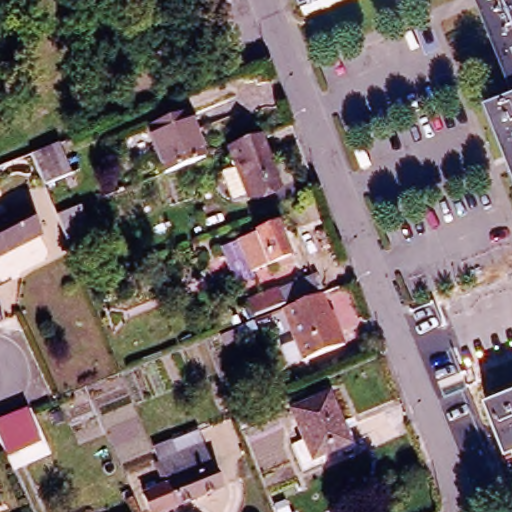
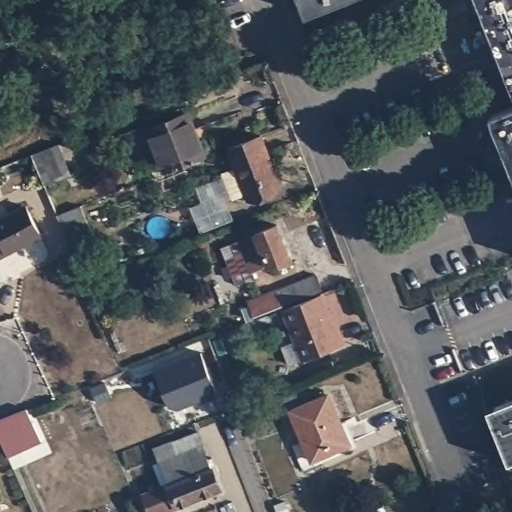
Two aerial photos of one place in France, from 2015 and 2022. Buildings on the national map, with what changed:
unchanged [(295,0),(337,0),(301,14),(295,0)]
unchanged [(470,0),(512,0),(512,179),(486,114),(512,103),(470,0)]
unchanged [(181,111),(199,155),(160,170),(143,126),(181,111)]
unchanged [(217,167),(233,160),(226,142),(259,129),(279,181),(246,194),(230,200),(217,167)]
unchanged [(55,147),(67,173),(39,183),(28,158),(55,147)]
unchanged [(43,233),(0,251),(0,216),(30,203),(43,233)]
unchanged [(78,210),(89,235),(65,244),(55,218),(78,210)]
unchanged [(278,267),(276,261),(272,262),(272,261),(256,267),(245,237),(260,231),(260,230),(281,222),(293,254),(296,260),(278,267)]
unchanged [(249,328),(255,326),(251,319),(322,291),(329,307),(258,335),(252,338),(249,328)]
unchanged [(344,343),(350,359),(308,376),(288,326),(313,317),(327,311),(328,311),(341,344),(344,343)]
new [(202,352),(218,394),(201,401),(200,398),(176,408),(169,405),(156,370),(202,352)]
unchanged [(348,443),(310,459),(290,410),(327,394),(348,443)]
unchanged [(487,410),(512,400),(512,461),(508,462),(487,410)]
unchanged [(5,418),(25,409),(26,410),(38,442),(5,456),(0,445),(0,420),(5,418)]
unchanged [(218,488),(163,512),(149,512),(142,493),(167,483),(152,449),(194,432),(218,488)]

